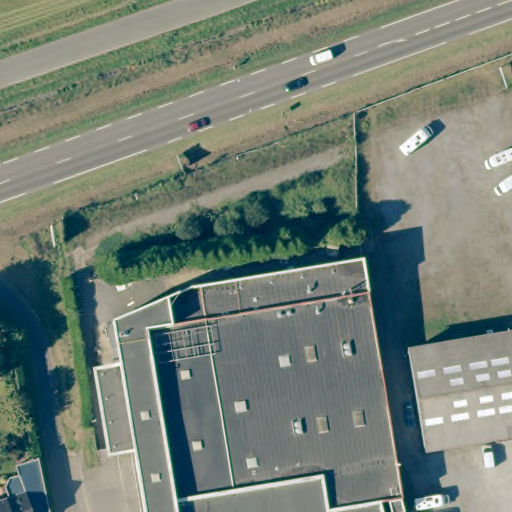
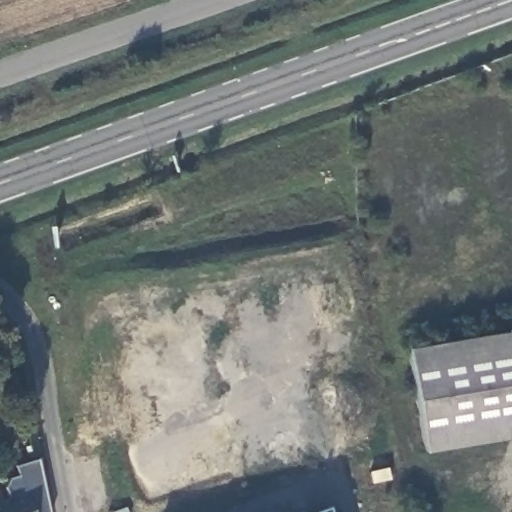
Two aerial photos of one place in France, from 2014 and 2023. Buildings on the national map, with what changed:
demolished [(364,269),(376,338),(386,404),(400,486),(403,503),(378,507),(373,508),(373,510),(374,512),(142,512),(130,448),(117,375),(109,328),(188,295),(364,265),(364,269)]
demolished [(512,335),(512,436),(424,450),(409,350),(512,335)]
new [(25,496),(10,501),(6,489),(9,480),(17,477),(15,468),(39,460),(50,512),(31,512),(25,496)]
unchanged [(25,496),(31,512),(0,512),(0,504),(25,496)]
new [(329,507),(330,512),(317,512),(329,507)]

